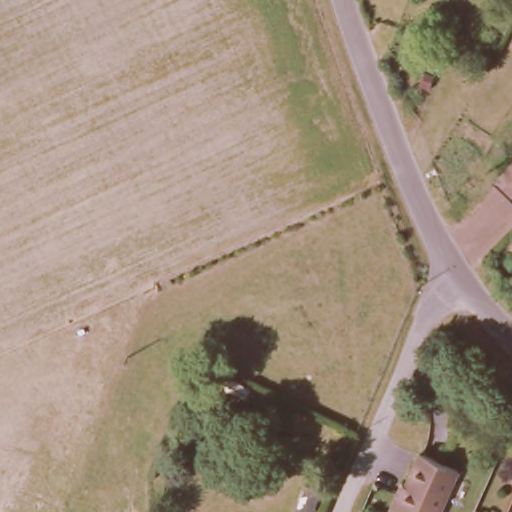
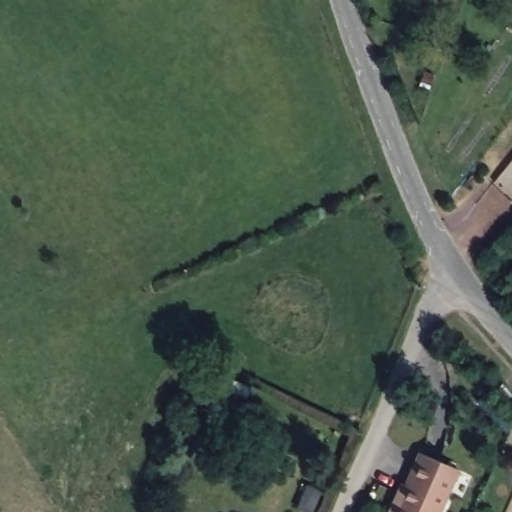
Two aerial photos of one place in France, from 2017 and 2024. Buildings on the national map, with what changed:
unchanged [(257,386),(249,408),(212,393),(220,371),(257,386)]
unchanged [(512,394),(512,401),(506,406),(492,390),(500,381),(512,394)]
unchanged [(400,491),(419,452),(457,470),(438,512),(386,512),(397,489),(400,491)]

